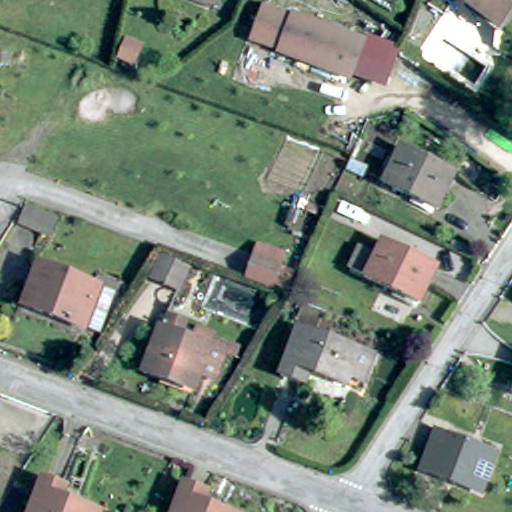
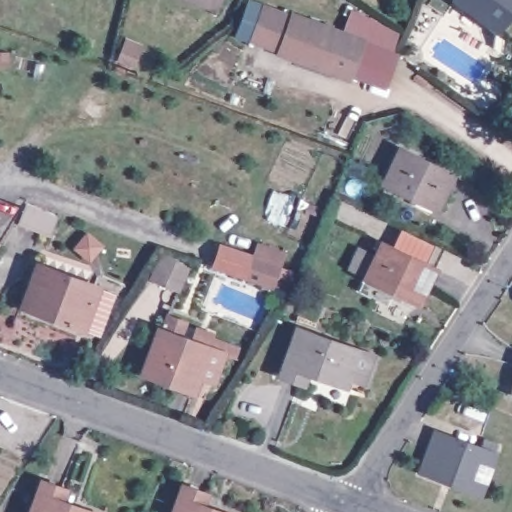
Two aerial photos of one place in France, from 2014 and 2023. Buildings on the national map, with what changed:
unchanged [(190,9),(167,0),(215,0),(208,16),(190,9)]
unchanged [(456,0),(512,0),(506,7),(491,26),(456,0)]
unchanged [(277,55),(277,52),(250,41),(258,19),(262,9),(290,19),(290,16),(321,27),(322,24),(332,27),(330,31),(361,42),(365,34),(401,41),(384,84),(351,70),(347,80),(277,55)]
unchanged [(119,59),(125,45),(127,39),(141,45),(139,50),(133,64),(119,59)]
unchanged [(452,171),(435,207),(381,181),(398,145),(452,171)]
unchanged [(61,220),(54,237),(22,224),(30,207),(61,220)]
unchanged [(372,257),(379,244),(435,270),(416,306),(347,271),(357,250),(372,257)]
unchanged [(181,293),(155,281),(165,257),(191,270),(181,293)]
unchanged [(259,260),(282,270),(275,288),(251,280),(259,260)]
unchanged [(12,305),(27,262),(87,285),(104,291),(89,333),(72,327),(12,305)]
unchanged [(357,383),(343,378),(339,390),(317,382),(320,377),(302,371),(297,386),(273,378),(291,330),(352,351),(352,354),(366,359),(357,383)]
unchanged [(193,378),(187,394),(135,375),(152,331),(187,345),(190,336),(197,338),(200,332),(234,344),(228,362),(216,357),(207,383),(193,378)]
unchanged [(512,375),(512,389),(507,387),(512,375)]
unchanged [(492,451),(478,489),(419,467),(434,430),(492,451)]
unchanged [(40,478),(64,487),(59,502),(75,508),(77,503),(97,511),(97,512),(28,512),(40,478)]
unchanged [(202,490),(195,505),(207,510),(210,506),(224,512),(166,512),(177,481),(202,490)]

